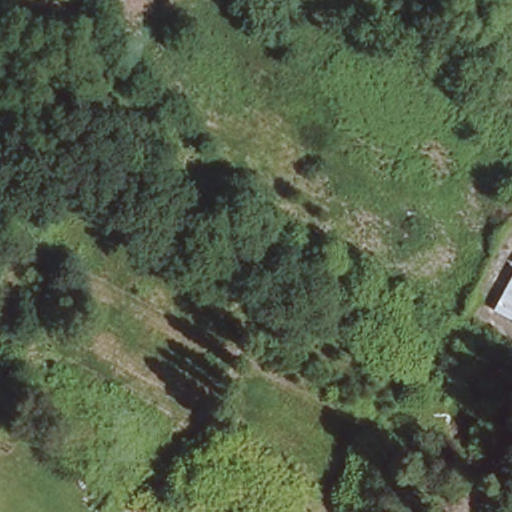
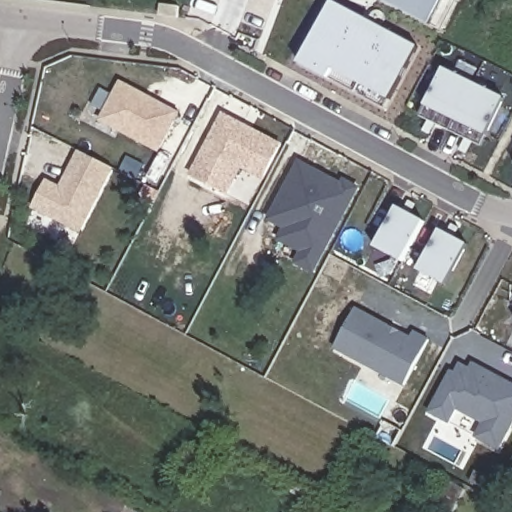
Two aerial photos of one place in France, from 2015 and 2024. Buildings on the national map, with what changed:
new [(384,0),(461,0),(443,32),(384,0)]
new [(333,1),(418,46),(389,101),(386,109),(329,78),(300,63),(333,1)]
new [(444,68),(505,98),(487,136),(482,146),(420,116),(425,106),(444,68)]
new [(119,81),(181,112),(156,152),(98,121),(119,81)]
new [(224,113),(282,143),(263,179),(243,169),(229,197),(189,176),(224,113)]
new [(48,179),(61,186),(79,150),(116,170),(82,234),(33,209),(48,179)]
new [(342,182),(344,178),(362,187),(315,274),(294,264),(300,252),(277,241),(283,228),(268,221),(300,159),(342,182)]
new [(401,210),(406,200),(413,204),(408,214),(421,220),(399,261),(372,246),(394,206),(401,210)]
new [(444,233),(449,223),(456,227),(451,237),(464,244),(442,285),(414,269),(437,229),(444,233)]
new [(356,309),(410,339),(414,333),(429,341),(405,387),(334,349),(356,309)]
new [(461,365),(470,370),(473,365),(512,386),(512,427),(499,451),(476,438),(486,420),(459,406),(449,424),(430,413),(451,373),(456,375),(461,365)]
unchanged [(463,491),(451,512),(437,512),(424,505),(440,478),(463,491)]
unchanged [(136,512),(114,512),(118,503),(136,512)]

